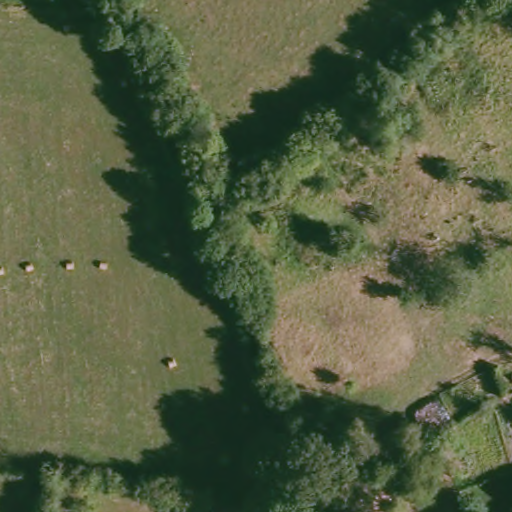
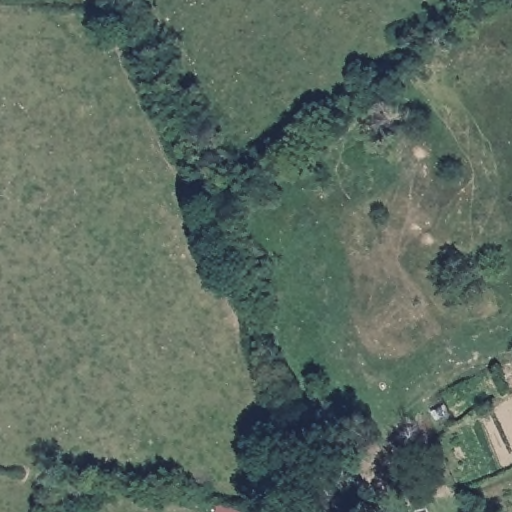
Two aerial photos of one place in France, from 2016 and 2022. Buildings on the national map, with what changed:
unchanged [(215,512),(216,504),(267,511),(267,512),(215,512)]
unchanged [(334,512),(317,512),(329,505),(334,512)]

